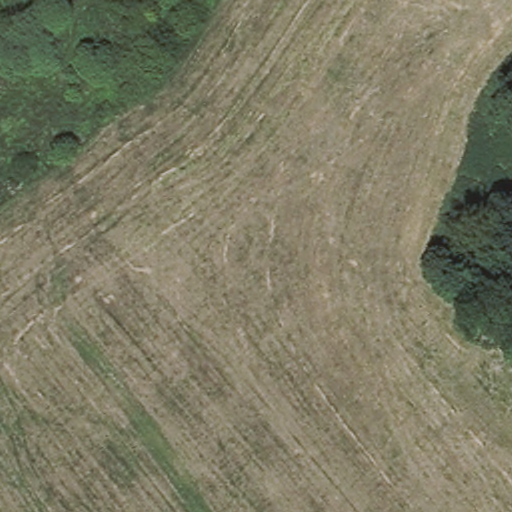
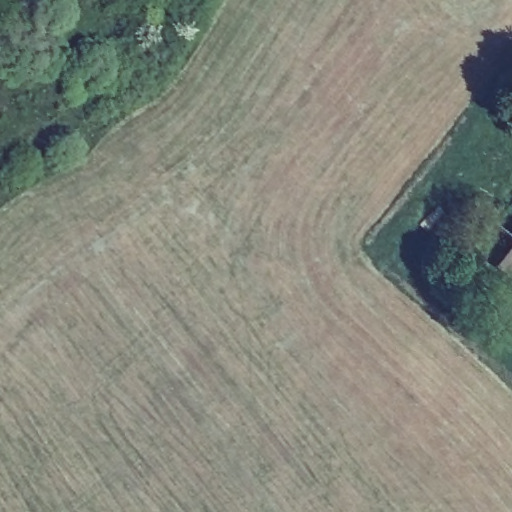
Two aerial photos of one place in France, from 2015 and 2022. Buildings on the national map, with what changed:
unchanged [(512,256),(512,283),(499,272),(512,256)]

